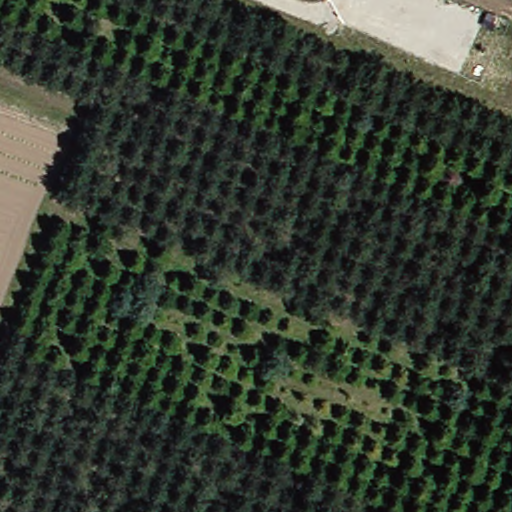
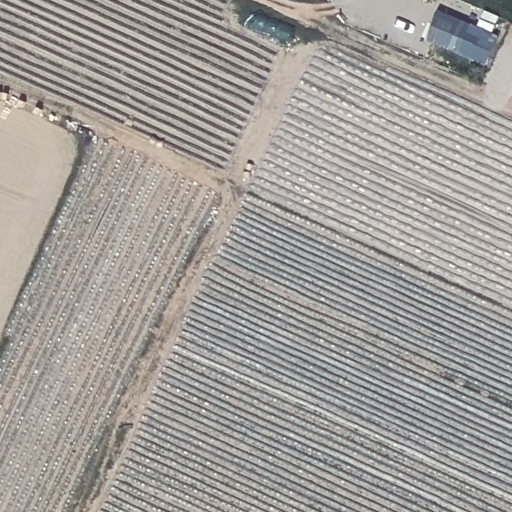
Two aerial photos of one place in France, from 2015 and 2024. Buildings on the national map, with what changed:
new [(500,37),(487,66),(429,40),(442,10),(500,37)]

